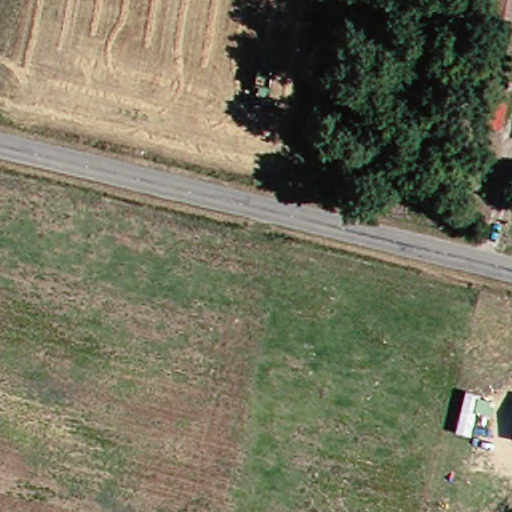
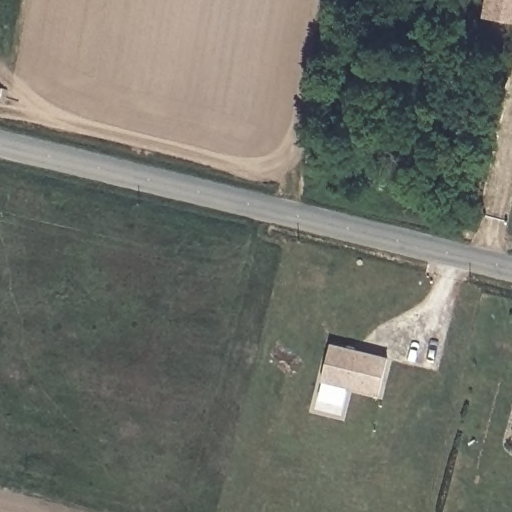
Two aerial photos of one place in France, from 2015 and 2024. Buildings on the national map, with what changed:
demolished [(487,18),(489,0),(512,0),(512,21),(487,18)]
new [(503,16),(507,0),(512,0),(512,18),(503,16)]
new [(379,392),(322,377),(332,342),(389,357),(379,392)]

